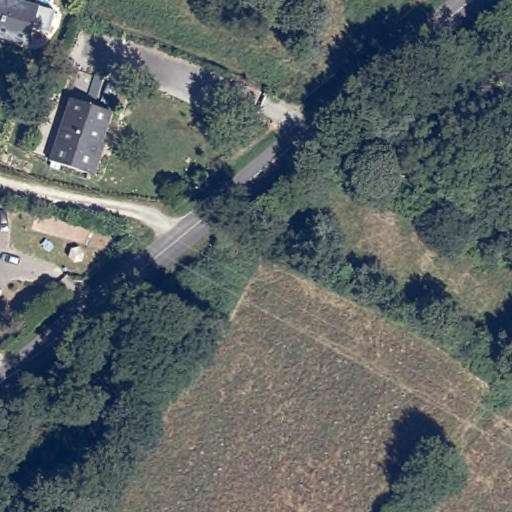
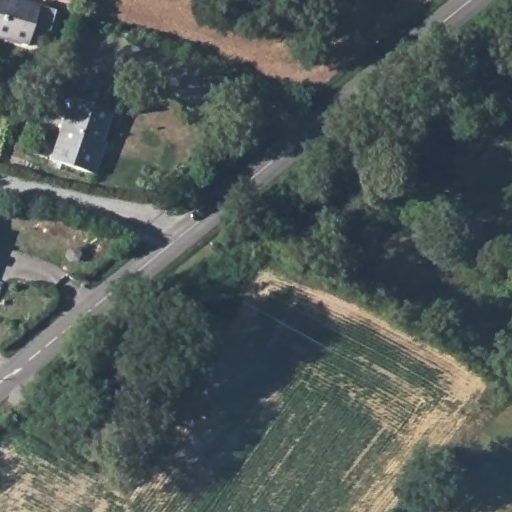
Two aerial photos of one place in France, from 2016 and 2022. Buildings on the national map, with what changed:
unchanged [(52,28),(35,23),(30,41),(0,33),(0,0),(37,0),(57,5),(52,28)]
unchanged [(67,101),(112,113),(104,140),(59,129),(67,101)]
unchanged [(49,162),(51,153),(59,129),(104,140),(99,154),(101,155),(98,166),(95,176),(49,162)]

